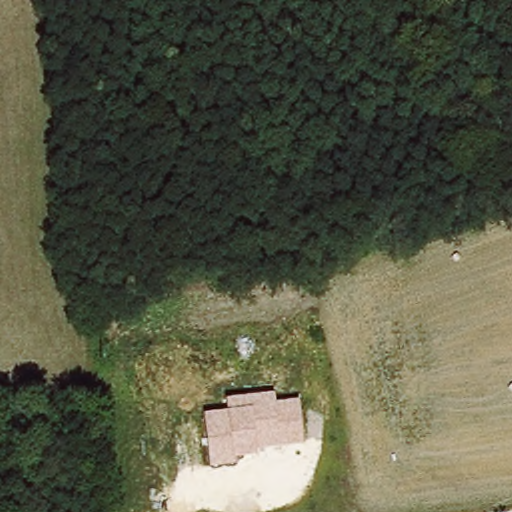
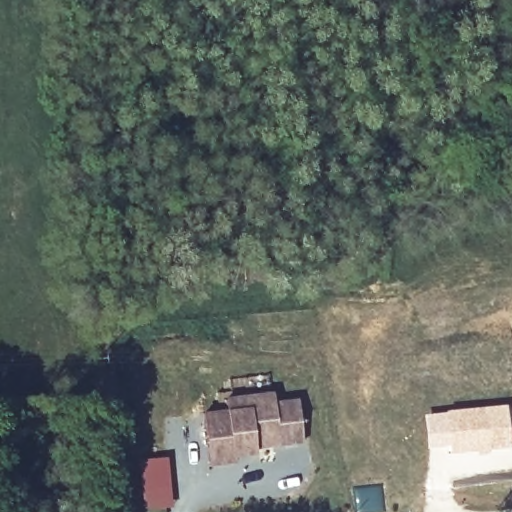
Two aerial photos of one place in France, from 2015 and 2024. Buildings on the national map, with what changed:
unchanged [(228,410),(227,399),(274,392),(275,403),(299,400),(304,441),(257,449),(257,455),(237,458),(238,466),(208,468),(202,416),(228,410)]
new [(507,404),(512,446),(448,453),(447,448),(425,449),(422,413),(507,404)]

